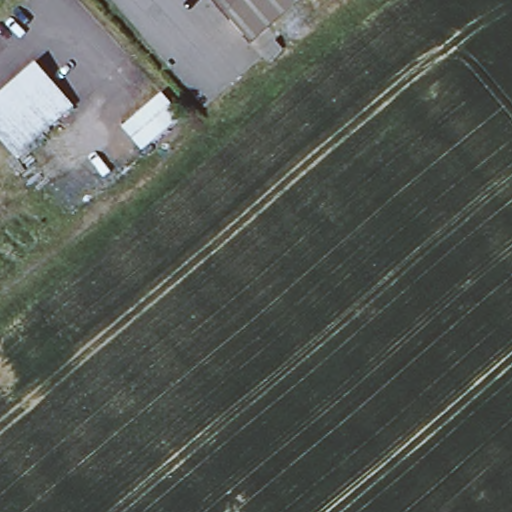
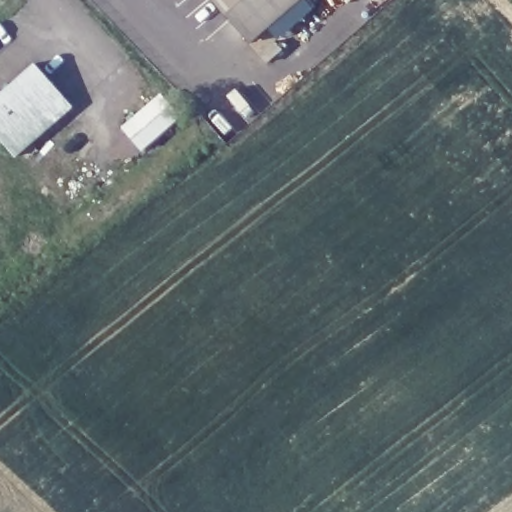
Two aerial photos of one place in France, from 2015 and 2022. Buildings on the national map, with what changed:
unchanged [(252,41),(215,0),(299,0),(252,41)]
unchanged [(279,48),(265,60),(257,52),(272,39),(279,48)]
unchanged [(70,104),(13,154),(0,140),(0,90),(32,61),(70,104)]
unchanged [(158,92),(177,115),(139,148),(120,126),(158,92)]

